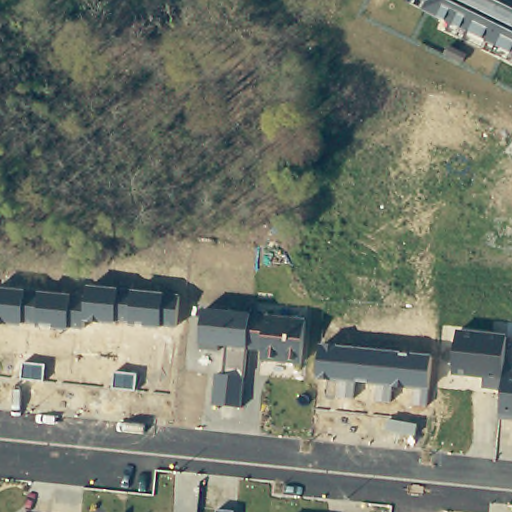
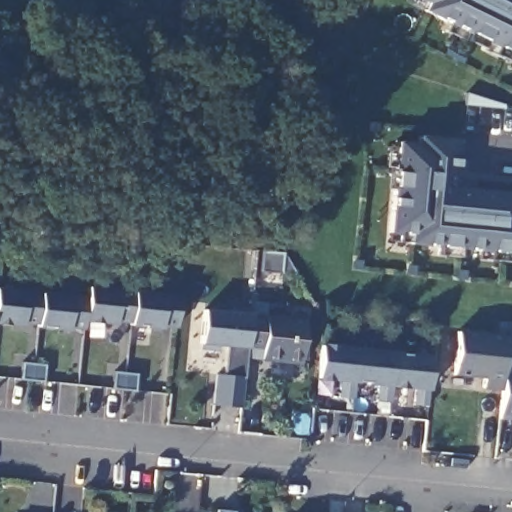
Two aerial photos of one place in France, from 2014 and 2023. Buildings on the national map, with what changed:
unchanged [(447,33),(452,27),(407,5),(409,0),(512,0),(512,62),(447,33)]
new [(397,141),(417,143),(418,135),(457,140),(452,186),(512,193),(512,253),(407,242),(408,233),(387,231),(397,141)]
unchanged [(161,327),(161,330),(131,326),(131,323),(115,322),(114,325),(85,322),(85,329),(69,327),(69,331),(37,327),(38,324),(23,324),(22,327),(0,326),(0,289),(89,297),(91,286),(120,290),(120,293),(134,295),(134,290),(182,296),(177,328),(161,327)]
unchanged [(302,365),(262,360),(262,351),(249,350),(243,408),(215,405),(217,375),(225,375),(228,351),(201,349),(205,309),(253,315),(252,321),(267,323),(269,318),(307,322),(302,365)]
unchanged [(499,420),(501,390),(484,389),(485,377),(452,373),(458,331),(507,336),(506,365),(512,366),(512,421),(499,420)]
unchanged [(428,407),(415,405),(418,388),(395,385),(392,402),(379,400),(380,386),(357,383),(355,400),(338,397),(341,382),(316,380),(322,345),(433,356),(428,407)]
unchanged [(219,511),(224,512),(218,512),(219,511)]

